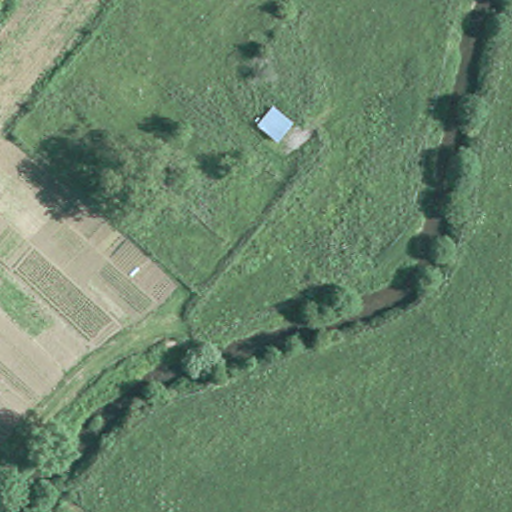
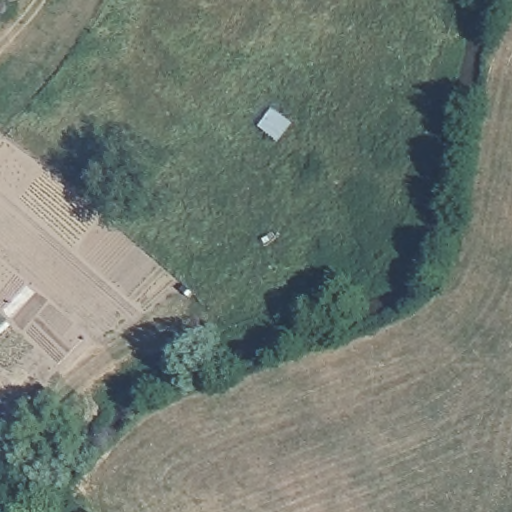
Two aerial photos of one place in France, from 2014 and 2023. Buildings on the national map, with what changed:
unchanged [(258,119),(279,99),(299,121),(273,145),(258,119)]

